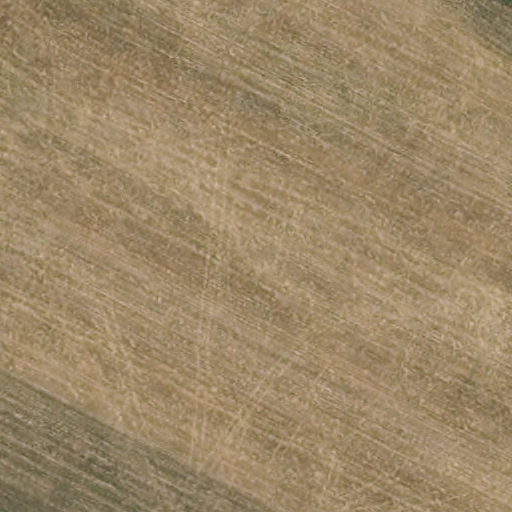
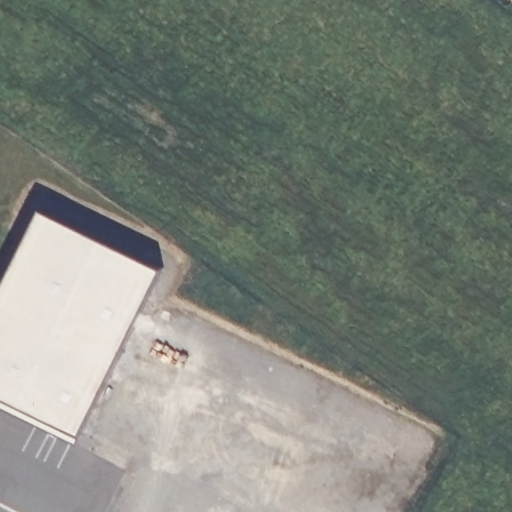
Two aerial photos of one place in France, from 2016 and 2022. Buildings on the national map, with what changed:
new [(79,433),(74,442),(0,404),(0,292),(41,210),(160,268),(79,433)]

